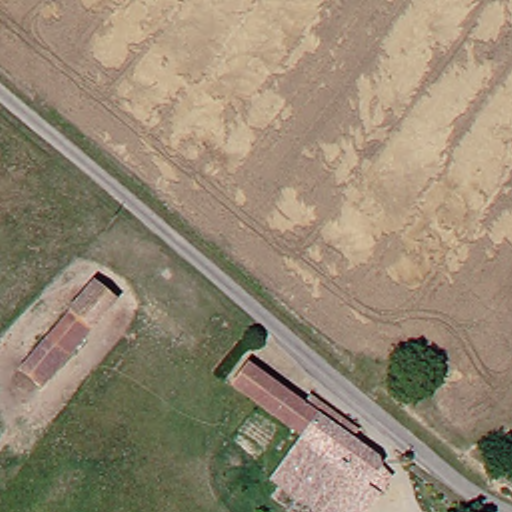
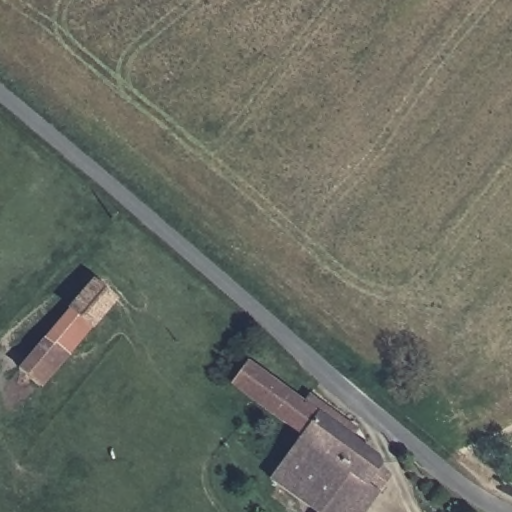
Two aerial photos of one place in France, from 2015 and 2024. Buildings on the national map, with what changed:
unchanged [(82,284),(104,302),(34,383),(12,366),(82,284)]
unchanged [(269,422),(220,388),(234,368),(285,400),(269,422)]
unchanged [(353,482),(337,472),(313,512),(310,512),(261,481),(292,436),(269,422),(285,400),(292,403),(297,396),(346,426),(340,437),(369,455),(353,482)]
unchanged [(365,490),(350,512),(313,512),(337,472),(353,482),(365,490)]

